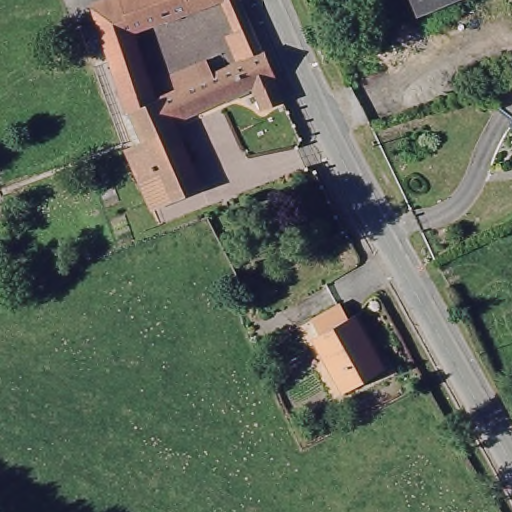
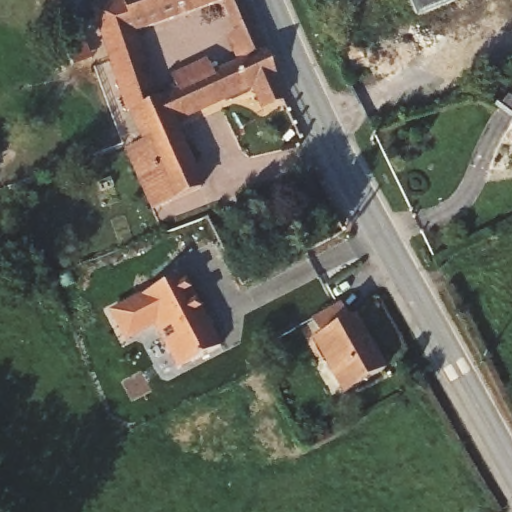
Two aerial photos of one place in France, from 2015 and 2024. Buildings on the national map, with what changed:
unchanged [(216,0),(145,27),(154,53),(140,59),(149,85),(230,50),(225,34),(226,33),(220,14),(222,13),(218,0),(241,0),(262,52),(128,112),(126,113),(120,99),(101,106),(71,7),(91,0),(216,0)]
unchanged [(414,0),(475,0),(423,22),(420,15),(414,0)]
unchanged [(262,52),(281,98),(260,107),(252,87),(172,122),(203,185),(171,201),(128,112),(262,52)]
unchanged [(512,125),(508,121),(512,116),(512,125)]
new [(105,311),(182,273),(219,346),(175,371),(152,328),(123,342),(105,311)]
unchanged [(340,301),(347,315),(352,312),(371,347),(331,368),(312,335),(319,331),(311,317),(340,301)]
unchanged [(371,347),(382,367),(342,389),(331,368),(371,347)]

